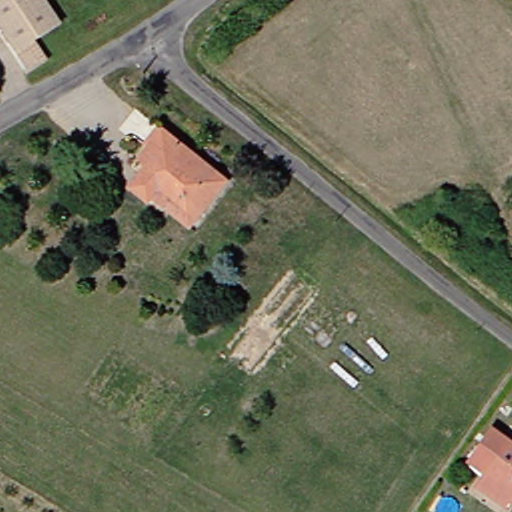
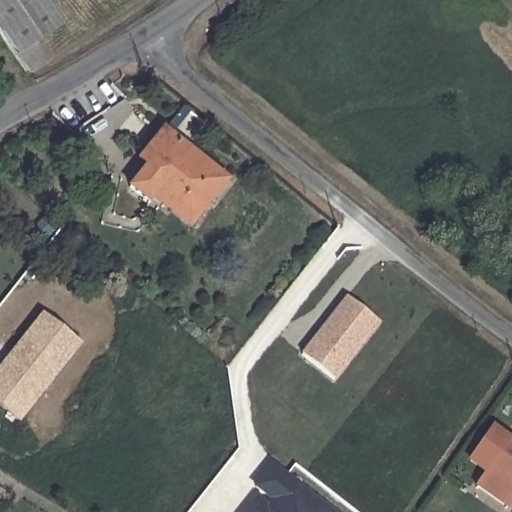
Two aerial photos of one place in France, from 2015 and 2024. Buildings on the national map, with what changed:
unchanged [(19,54),(0,30),(0,0),(40,0),(57,23),(34,41),(48,59),(32,71),(19,54)]
unchanged [(149,199),(144,204),(125,188),(142,168),(132,160),(142,148),(157,130),(219,180),(189,218),(181,227),(149,199)]
unchanged [(495,261),(508,273),(502,279),(490,266),(495,261)]
new [(333,380),(301,355),(352,293),(383,319),(333,380)]
new [(82,345),(19,425),(0,410),(0,365),(41,313),(82,345)]
unchanged [(508,445),(512,440),(512,492),(495,511),(465,488),(478,472),(459,457),(469,444),(482,426),(508,445)]
new [(256,496),(265,504),(270,501),(251,487),(271,462),(334,512),(243,512),(256,496)]

